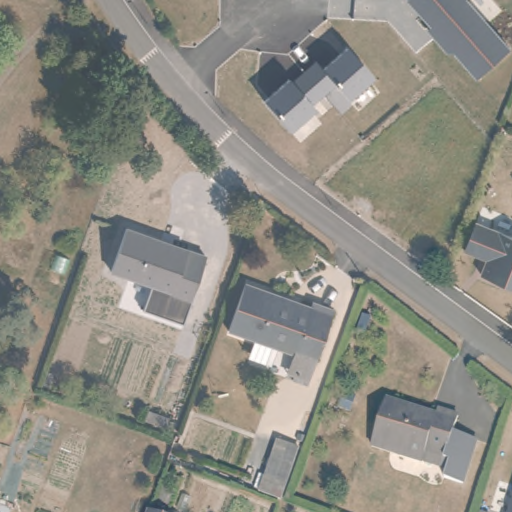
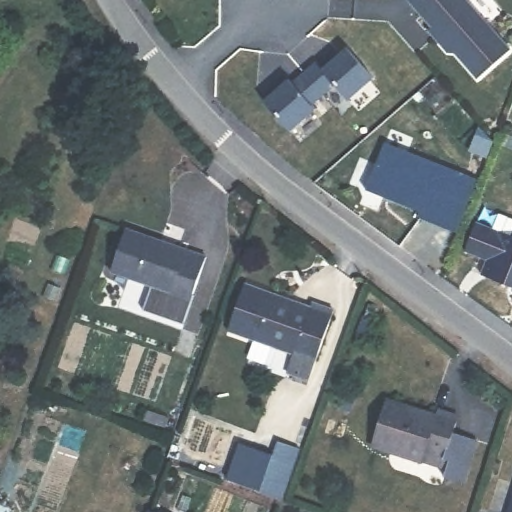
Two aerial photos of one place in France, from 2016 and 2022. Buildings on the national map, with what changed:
unchanged [(457,56),(448,56),(430,35),(432,29),(407,1),(408,0),(467,0),(466,1),(511,50),(476,80),(457,56)]
unchanged [(347,100),(339,91),(314,111),(290,132),(266,100),(288,79),(297,89),(344,48),(373,79),(347,100)]
new [(479,179),(457,233),(417,218),(419,212),(366,191),(384,142),(479,179)]
unchanged [(485,257),(463,247),(475,219),(512,235),(512,285),(479,271),(485,257)]
unchanged [(205,255),(193,293),(194,293),(183,323),(140,307),(149,283),(109,268),(124,227),(205,255)]
unchanged [(278,368),(285,347),(229,326),(245,281),(302,302),(304,294),(328,302),(308,356),(300,376),(278,368)]
unchanged [(388,395),(436,412),(439,406),(459,412),(453,428),(476,437),(462,480),(438,472),(444,455),(427,449),(424,458),(372,442),(388,395)]
unchanged [(295,455),(284,489),(262,482),(274,447),(295,455)]
unchanged [(505,512),(512,492),(512,512),(505,512)]
unchanged [(167,512),(147,512),(149,506),(167,512)]

